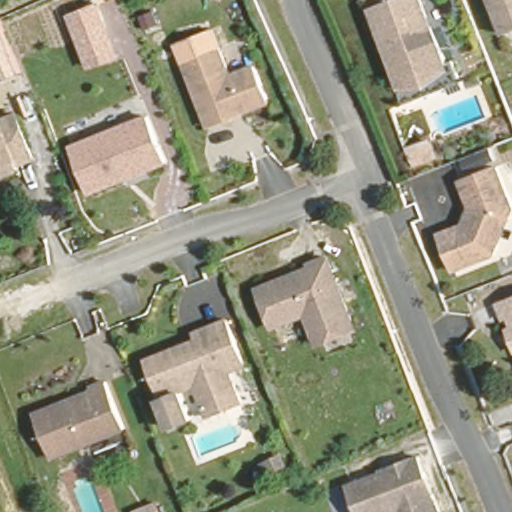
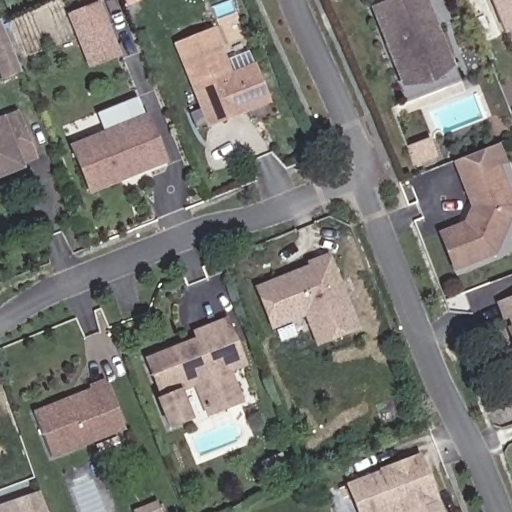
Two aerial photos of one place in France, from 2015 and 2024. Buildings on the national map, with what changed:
unchanged [(368,0),(395,0),(372,9),(368,0)]
unchanged [(454,62),(461,81),(404,104),(396,84),(401,82),(372,9),(395,0),(423,0),(449,64),(454,62)]
unchanged [(500,39),(484,0),(512,0),(512,34),(500,39)]
unchanged [(121,57),(89,70),(66,15),(101,3),(121,57)]
unchanged [(1,83),(0,80),(0,23),(23,74),(1,83)]
unchanged [(206,127),(174,46),(212,31),(228,78),(253,68),(267,104),(241,114),(229,119),(206,127)]
unchanged [(20,168),(0,175),(0,120),(1,120),(1,121),(16,115),(33,158),(18,164),(20,168)]
unchanged [(89,194),(71,147),(148,116),(168,164),(89,194)]
unchanged [(494,260),(454,275),(441,238),(466,228),(472,212),(453,166),(496,147),(503,166),(497,170),(512,206),(512,218),(510,223),(499,249),(494,260)]
unchanged [(356,333),(318,348),(306,318),(273,331),(259,293),(311,272),(310,269),(327,262),(356,333)]
unchanged [(510,315),(505,317),(499,301),(512,296),(512,321),(510,315)]
unchanged [(206,416),(196,390),(182,395),(193,420),(166,431),(151,398),(159,395),(146,364),(197,344),(194,337),(227,324),(246,370),(230,376),(242,407),(225,414),(208,421),(206,416)]
unchanged [(509,329),(512,327),(512,338),(509,329)]
unchanged [(106,385),(125,432),(51,462),(34,418),(69,405),(91,396),(90,392),(106,385)]
unchanged [(286,467),(271,474),(267,463),(281,456),(286,467)]
unchanged [(348,490),(380,478),(380,476),(419,461),(428,482),(434,499),(439,512),(357,512),(348,490)]
new [(14,507),(20,504),(20,502),(42,494),(48,512),(0,512),(0,509),(12,505),(14,507)]
unchanged [(135,511),(155,502),(159,512),(135,512),(135,511)]

